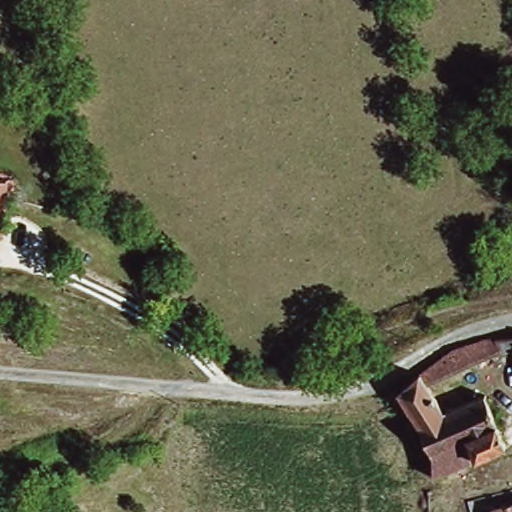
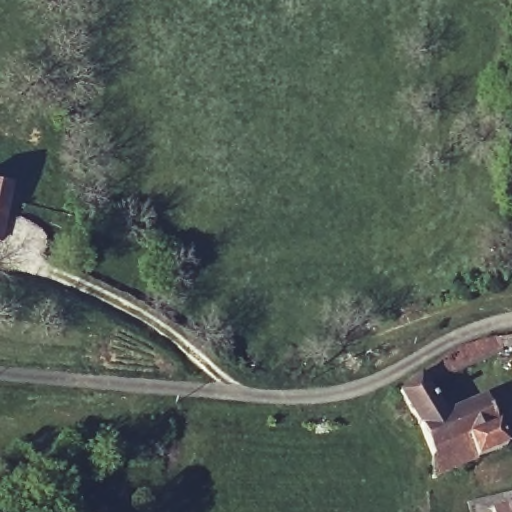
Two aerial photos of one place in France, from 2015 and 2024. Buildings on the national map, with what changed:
unchanged [(0,232),(0,178),(7,178),(9,197),(8,233),(0,232)]
unchanged [(452,362),(466,351),(480,346),(512,342),(512,387),(506,358),(436,384),(443,401),(451,412),(493,393),(512,440),(512,447),(442,481),(443,457),(410,396),(452,362)]
unchanged [(512,500),(512,512),(500,512),(498,503),(512,500)]

